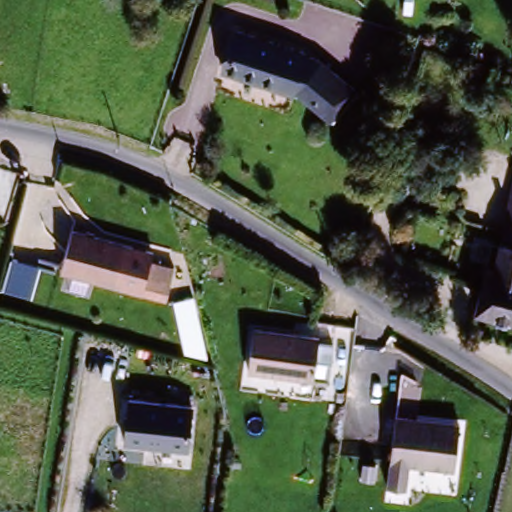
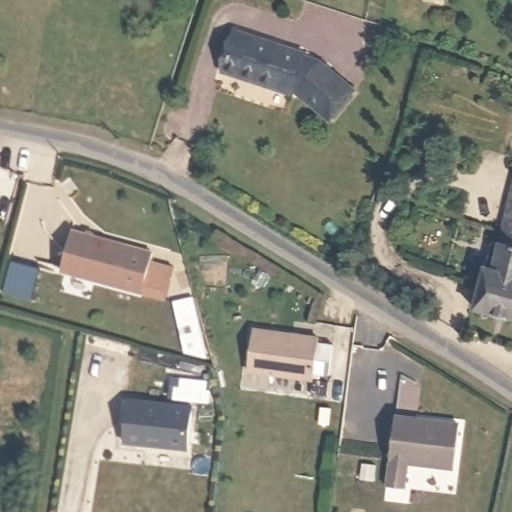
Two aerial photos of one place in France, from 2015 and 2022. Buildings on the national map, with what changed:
unchanged [(298,51),(357,86),(331,124),(283,96),(230,74),(245,32),(298,51)]
unchanged [(497,267),(504,269),(512,227),(512,320),(482,309),(497,267)]
unchanged [(149,249),(140,290),(57,271),(67,230),(149,249)]
unchanged [(167,278),(164,295),(150,292),(154,275),(167,278)]
unchanged [(327,374),(312,372),(311,378),(244,367),(250,326),(317,336),(315,342),(332,344),(327,374)]
unchanged [(129,400),(192,408),(187,451),(124,444),(129,400)]
unchanged [(452,476),(409,468),(403,498),(383,494),(397,420),(460,431),(452,476)]

